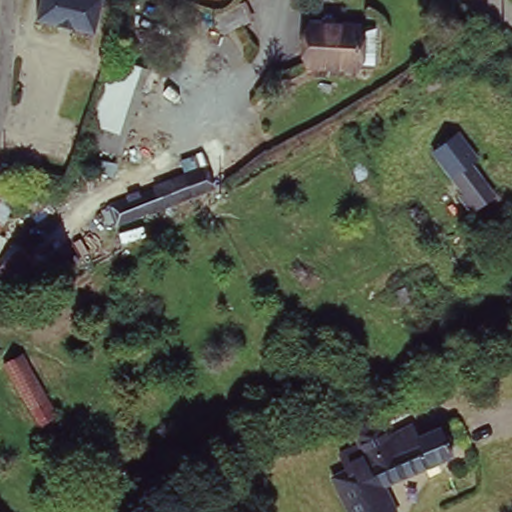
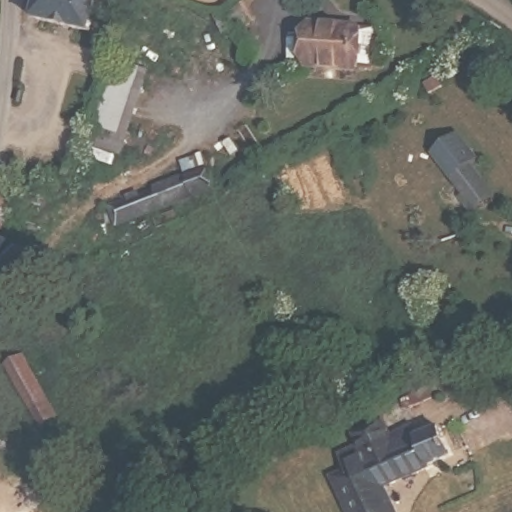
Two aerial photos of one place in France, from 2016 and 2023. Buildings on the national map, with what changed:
unchanged [(107,1),(97,39),(40,24),(46,0),(103,0),(107,1)]
unchanged [(374,30),(374,41),(373,66),(356,64),(355,70),(306,65),(309,20),(358,25),(358,27),(366,29),(374,30)]
unchanged [(83,171),(112,54),(147,62),(118,179),(83,171)]
unchanged [(453,136),(501,194),(472,217),(423,157),(453,136)]
unchanged [(185,194),(98,225),(91,207),(178,177),(177,174),(198,167),(204,166),(212,188),(205,190),(186,197),(185,194)]
unchanged [(3,177),(25,192),(4,230),(10,234),(0,253),(0,183),(3,177)]
unchanged [(45,403),(29,410),(3,363),(21,353),(45,403)]
unchanged [(349,462),(342,445),(361,437),(357,426),(387,413),(391,425),(412,416),(419,433),(441,425),(453,455),(379,486),(392,512),(349,512),(331,470),(349,462)]

